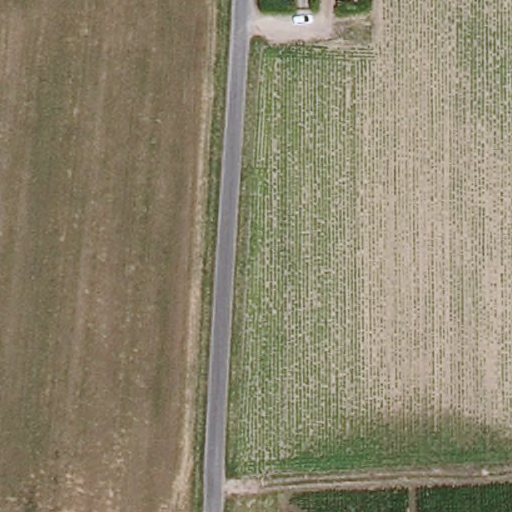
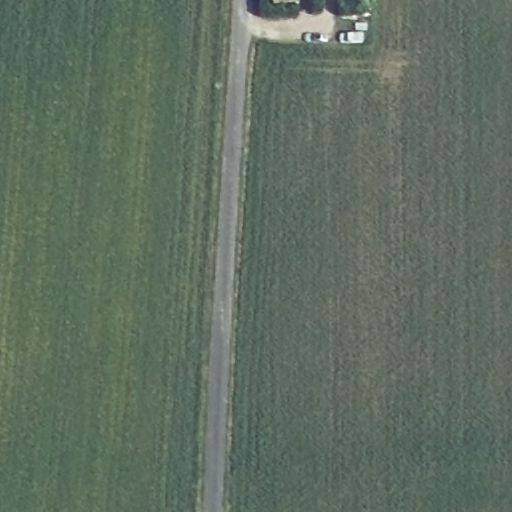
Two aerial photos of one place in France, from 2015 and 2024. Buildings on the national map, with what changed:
unchanged [(349,0),(361,0),(361,5),(349,5),(349,0)]

